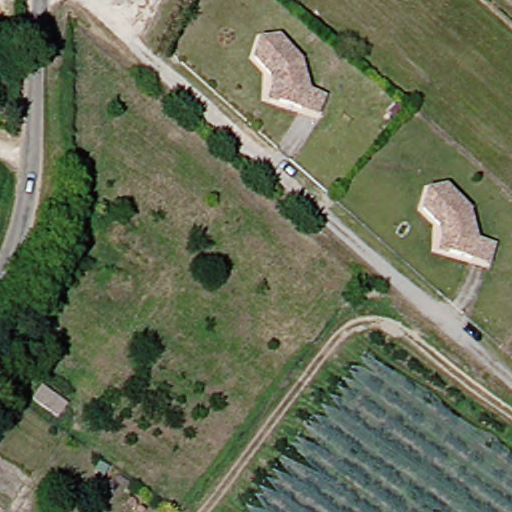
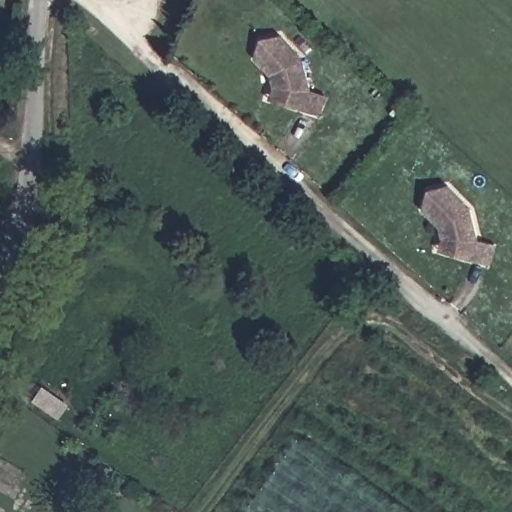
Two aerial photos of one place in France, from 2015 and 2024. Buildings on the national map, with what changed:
unchanged [(302,111),(280,101),(272,96),(277,85),(274,72),(260,52),(270,35),(289,35),(309,61),(312,92),(326,99),(317,118),(302,111)]
unchanged [(474,260),(452,252),(442,249),(447,237),(442,224),(426,206),(434,188),(454,185),(476,210),(482,240),(497,245),(489,266),(474,260)]

